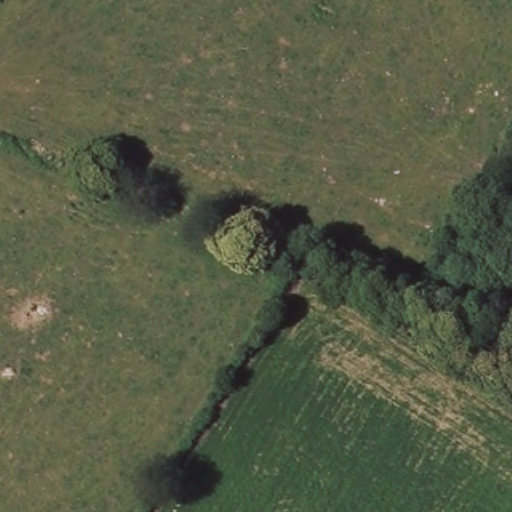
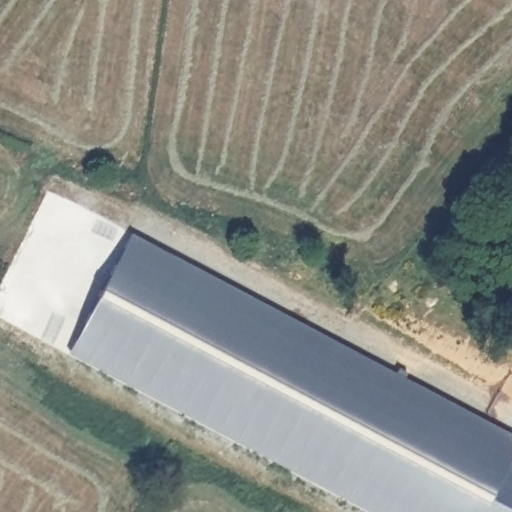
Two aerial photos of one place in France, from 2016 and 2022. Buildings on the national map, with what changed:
new [(512,435),(512,458),(509,463),(512,464),(512,512),(369,512),(68,354),(132,235),(512,435)]

